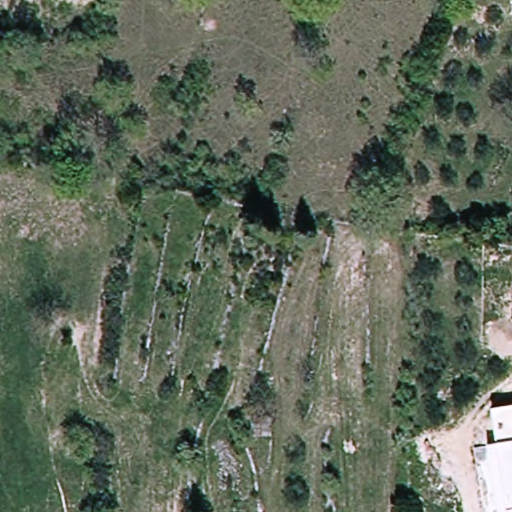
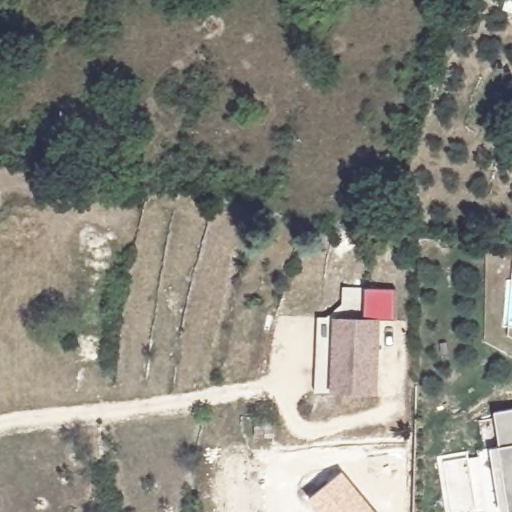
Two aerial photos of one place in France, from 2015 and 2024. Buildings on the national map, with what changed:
new [(365,318),(365,288),(395,289),(394,319),(380,319),(378,393),(330,393),(333,317),(365,318)]
unchanged [(501,512),(491,450),(498,448),(493,412),(512,409),(512,512),(501,512)]
new [(319,512),(309,499),(343,471),(376,512),(319,512)]

